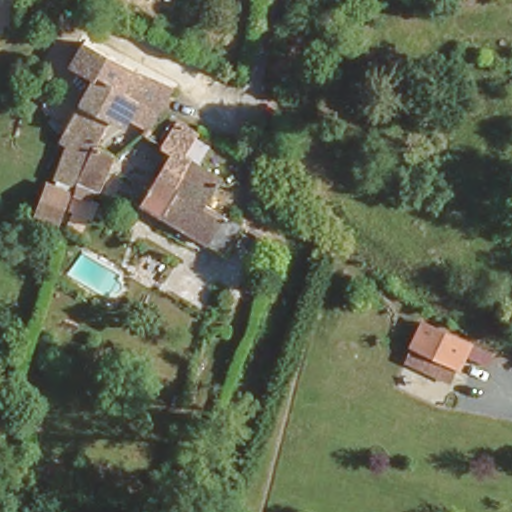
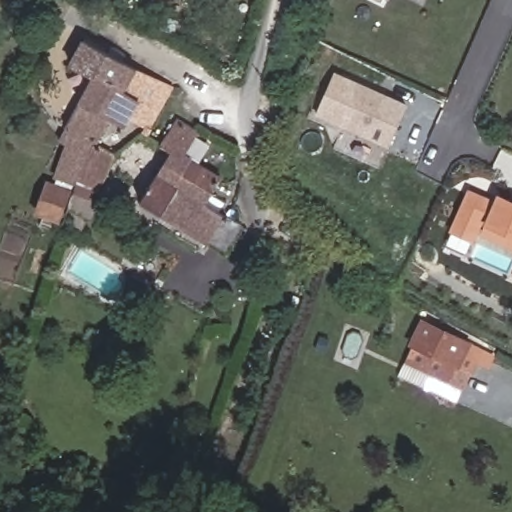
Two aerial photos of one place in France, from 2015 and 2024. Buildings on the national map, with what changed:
new [(382,3),(376,0),(384,0),(382,3)]
unchanged [(64,128),(89,82),(67,70),(81,44),(167,90),(144,133),(123,122),(117,134),(105,128),(95,146),(64,128)]
new [(408,104),(390,148),(315,116),(333,72),(408,104)]
unchanged [(9,76),(23,84),(17,96),(3,88),(9,76)]
unchanged [(211,246),(145,208),(160,183),(167,170),(175,154),(164,148),(161,147),(175,124),(180,127),(200,138),(187,160),(192,162),(222,179),(211,200),(220,205),(215,214),(225,220),(243,230),(229,257),(211,246)]
unchanged [(95,146),(119,158),(94,202),(100,204),(88,235),(64,227),(34,217),(46,182),(52,182),(66,148),(55,142),(64,128),(95,146)]
new [(468,185),(493,198),(498,189),(512,195),(512,246),(479,232),(475,241),(449,231),(468,185)]
unchanged [(406,353),(418,328),(463,350),(452,375),(450,374),(445,371),(406,353)]

